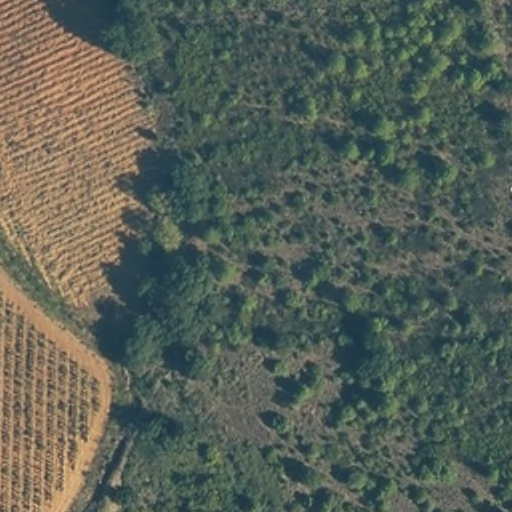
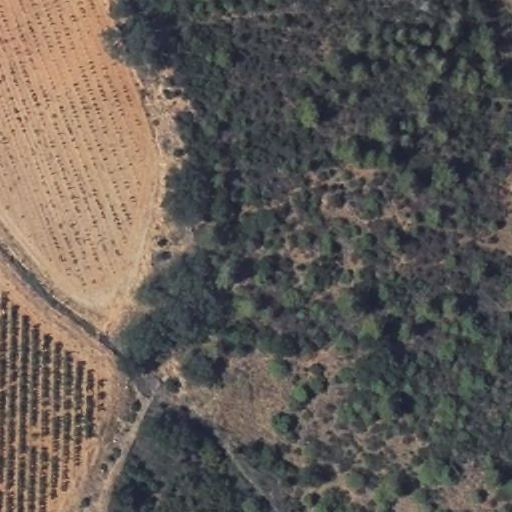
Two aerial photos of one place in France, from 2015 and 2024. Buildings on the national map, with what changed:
[]

